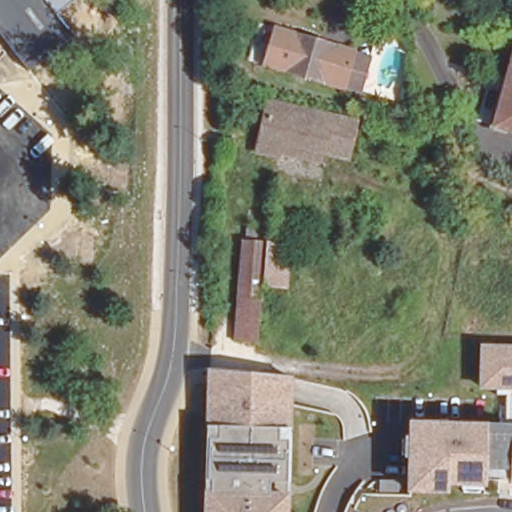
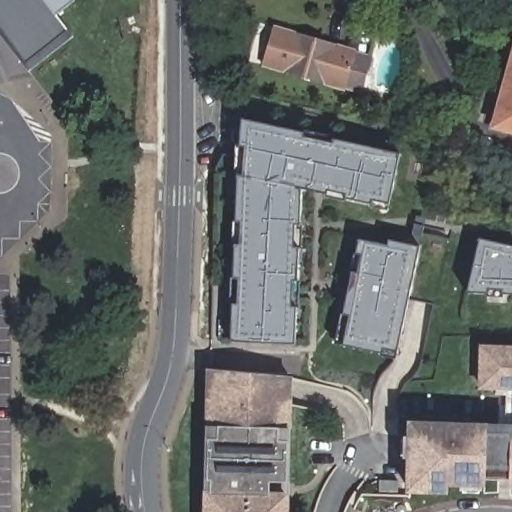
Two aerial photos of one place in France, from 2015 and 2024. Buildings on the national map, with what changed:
unchanged [(57,14),(74,35),(29,71),(0,33),(0,0),(74,0),(75,0),(57,14)]
unchanged [(356,91),(344,88),(343,89),(263,65),(274,27),(354,51),(367,55),(356,91)]
demolished [(279,141),(276,154),(276,157),(250,151),(262,100),(355,120),(346,156),(322,150),(279,141)]
unchanged [(512,100),(512,132),(504,130),(512,100)]
new [(400,153),(388,208),(302,189),(239,174),(244,118),(400,153)]
new [(302,189),(295,344),(232,342),(239,174),(302,189)]
demolished [(243,236),(266,237),(257,338),(235,335),(243,236)]
new [(468,293),(479,238),(512,246),(512,295),(468,293)]
new [(338,342),(360,241),(417,253),(396,355),(338,342)]
unchanged [(512,345),(512,392),(480,390),(479,344),(512,345)]
unchanged [(294,377),(293,427),(290,512),(204,512),(204,491),(212,492),(213,427),(211,369),(294,377)]
unchanged [(512,425),(512,478),(488,477),(487,486),(450,486),(449,495),(407,495),(410,421),(512,425)]

